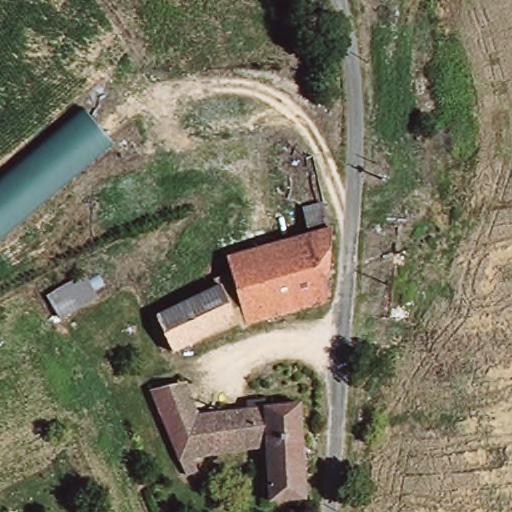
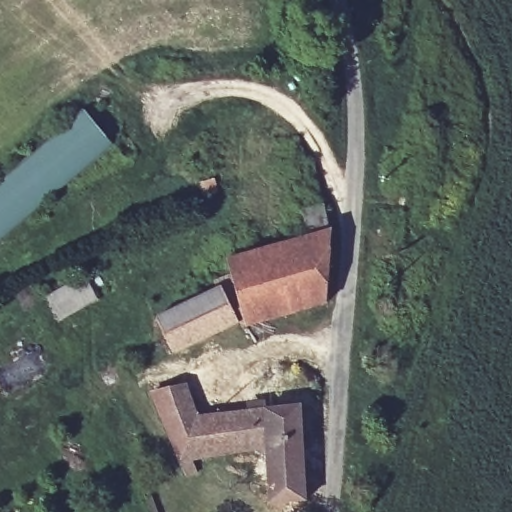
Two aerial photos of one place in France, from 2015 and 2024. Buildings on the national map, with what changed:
unchanged [(117,144),(0,244),(0,182),(87,110),(117,144)]
unchanged [(307,241),(300,217),(324,210),(331,235),(338,233),(332,308),(252,326),(248,322),(244,324),(222,264),(307,241)]
unchanged [(59,321),(46,294),(86,274),(100,302),(59,321)]
unchanged [(162,321),(226,291),(244,324),(178,355),(162,321)]
unchanged [(307,498),(269,501),(264,447),(189,457),(194,469),(185,474),(152,393),(170,386),(184,380),(198,412),(301,404),(307,498)]

